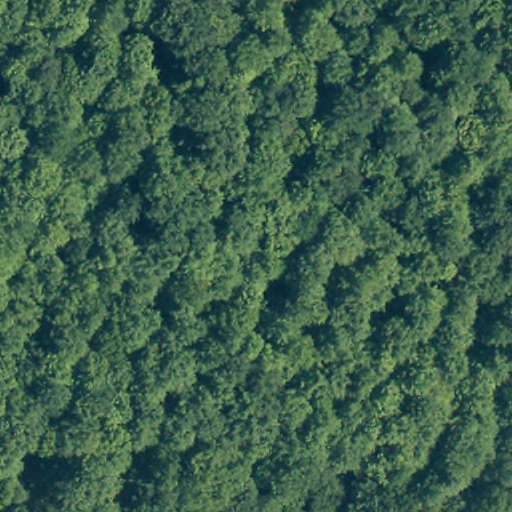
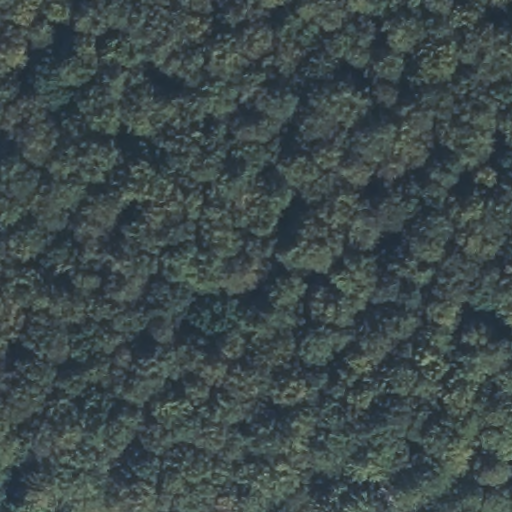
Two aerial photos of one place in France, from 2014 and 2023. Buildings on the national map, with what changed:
[]

